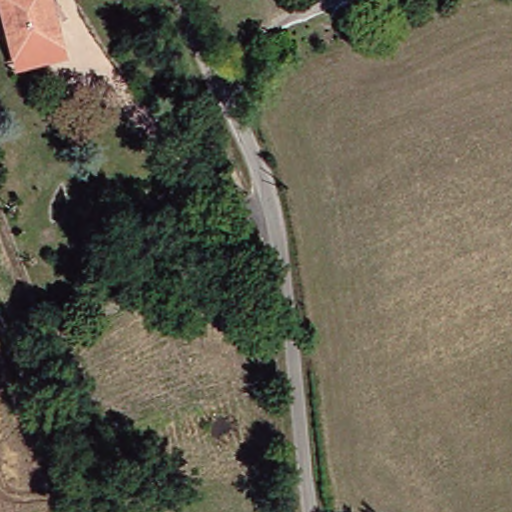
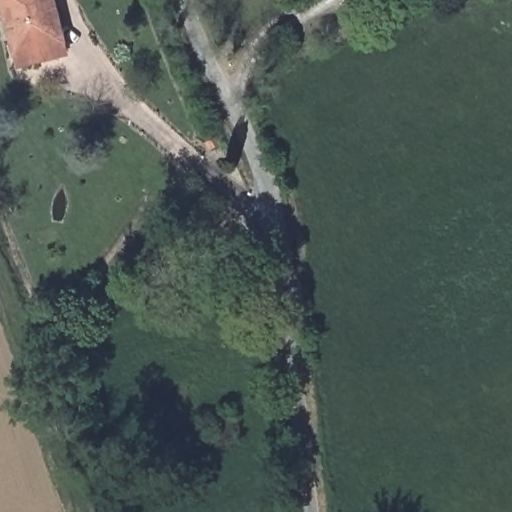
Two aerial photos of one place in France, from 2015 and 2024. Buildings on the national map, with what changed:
unchanged [(52,63),(15,73),(0,18),(0,0),(46,0),(47,4),(62,60),(52,63)]
unchanged [(470,4),(468,0),(478,0),(470,4)]

